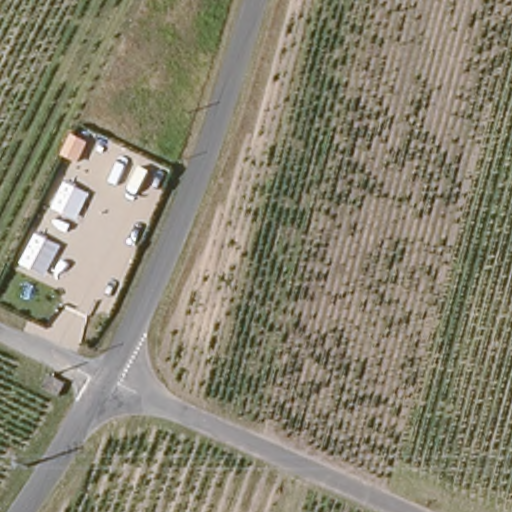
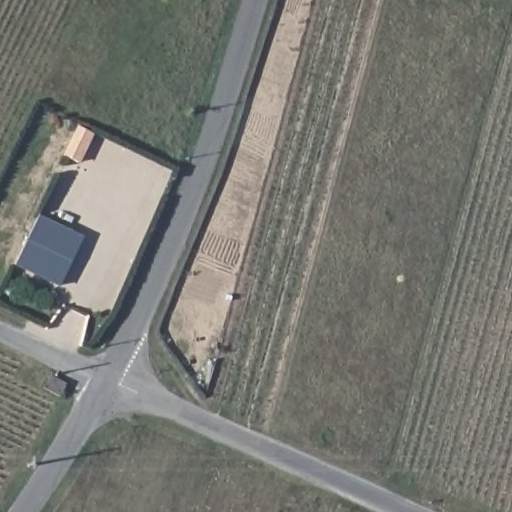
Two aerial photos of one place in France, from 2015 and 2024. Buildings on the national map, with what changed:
unchanged [(82,165),(61,155),(72,133),(93,144),(82,165)]
new [(61,289),(13,265),(38,214),(85,236),(61,289)]
unchanged [(55,405),(39,394),(48,377),(66,387),(55,405)]

